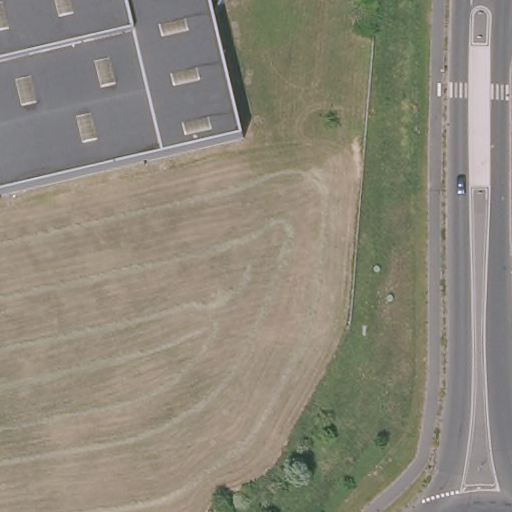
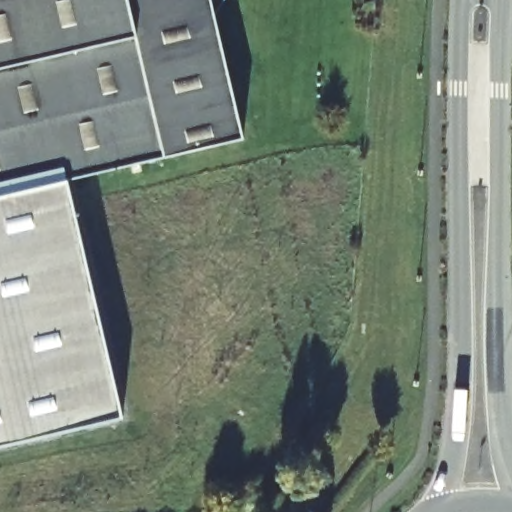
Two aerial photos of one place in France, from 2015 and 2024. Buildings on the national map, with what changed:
unchanged [(247,140),(0,196),(0,0),(226,0),(220,14),(247,140)]
new [(0,444),(0,196),(68,181),(120,415),(0,444)]

